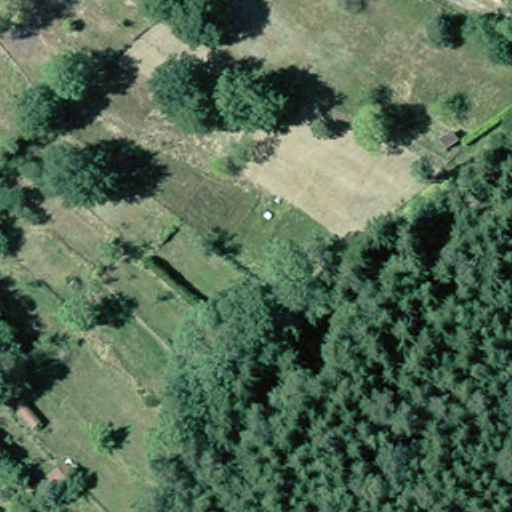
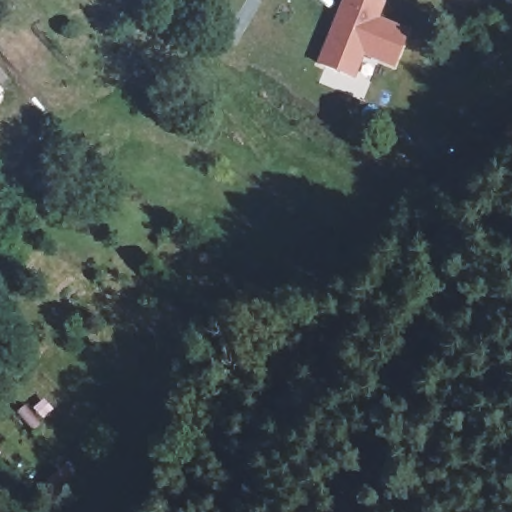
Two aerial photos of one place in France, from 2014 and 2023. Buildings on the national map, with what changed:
new [(332,42),(336,31),(332,30),(340,7),(342,8),(346,0),(372,0),(380,3),(374,21),(407,32),(392,68),(362,56),(352,81),(317,67),(327,41),(332,42)]
unchanged [(442,142),(453,135),(458,144),(447,151),(442,142)]

